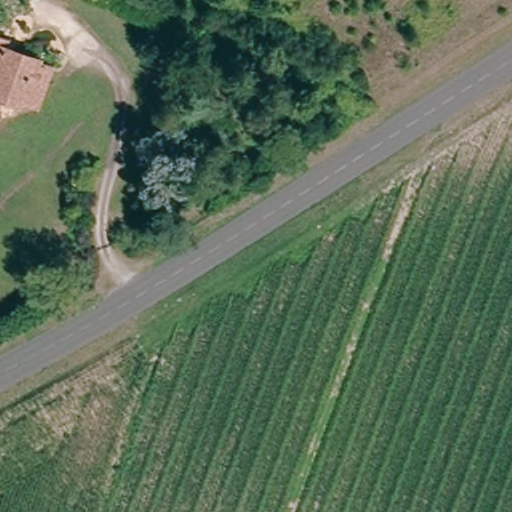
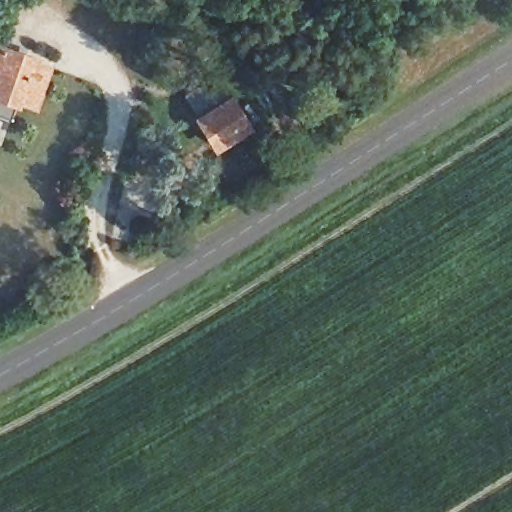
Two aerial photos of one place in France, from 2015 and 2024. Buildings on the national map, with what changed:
unchanged [(35,110),(15,103),(7,118),(0,115),(0,46),(50,65),(35,110)]
new [(230,100),(247,127),(216,146),(199,120),(230,100)]

